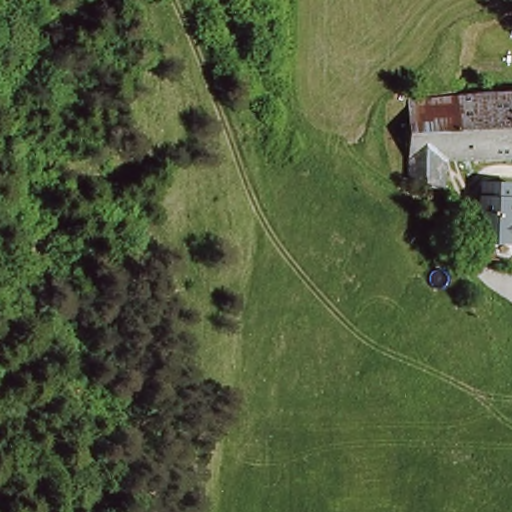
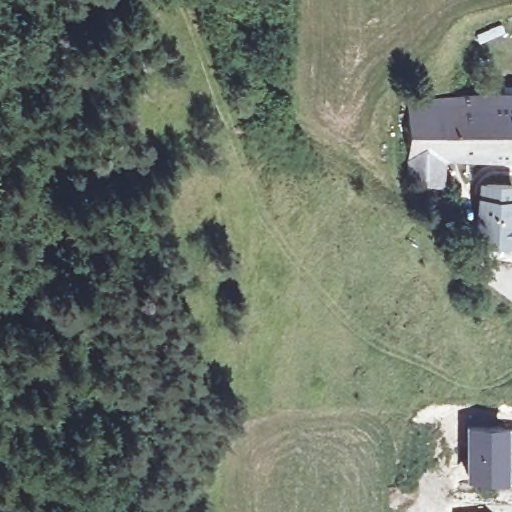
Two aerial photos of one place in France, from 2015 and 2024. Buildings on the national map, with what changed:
unchanged [(491,97),(512,97),(512,159),(444,159),(443,189),(411,182),(409,105),(491,97)]
unchanged [(484,189),(486,174),(509,174),(510,208),(512,208),(512,229),(511,229),(511,248),(483,245),(483,228),(478,228),(479,191),(484,189)]
new [(506,423),(508,478),(464,479),(463,422),(506,423)]

